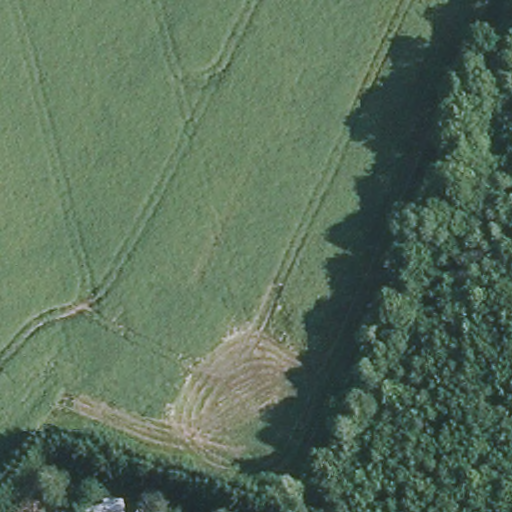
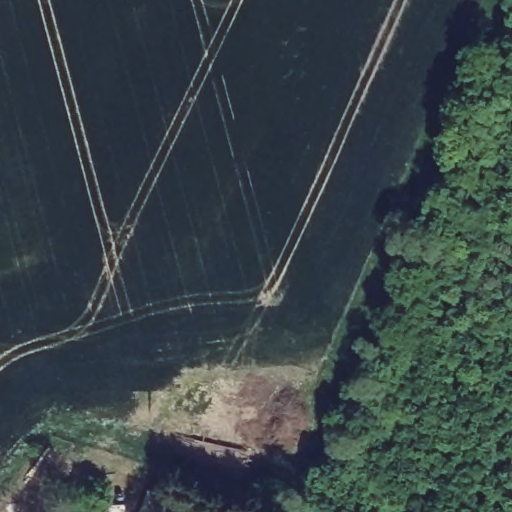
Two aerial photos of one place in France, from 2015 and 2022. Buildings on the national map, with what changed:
unchanged [(168,498),(164,512),(139,512),(145,491),(168,498)]
unchanged [(126,502),(127,512),(86,512),(85,503),(126,502)]

